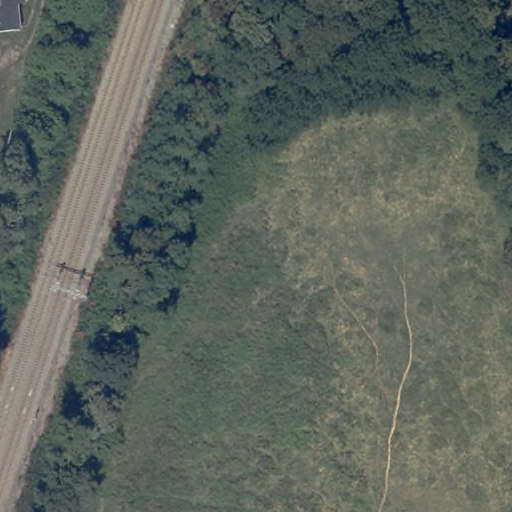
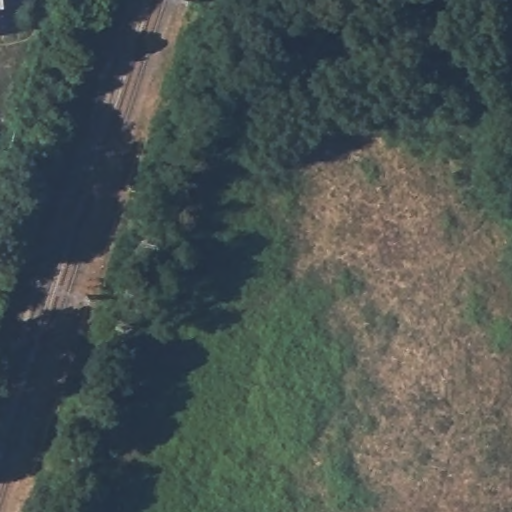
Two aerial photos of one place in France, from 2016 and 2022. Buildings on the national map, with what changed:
unchanged [(28,8),(21,9),(23,34),(0,37),(0,0),(28,0),(28,8)]

